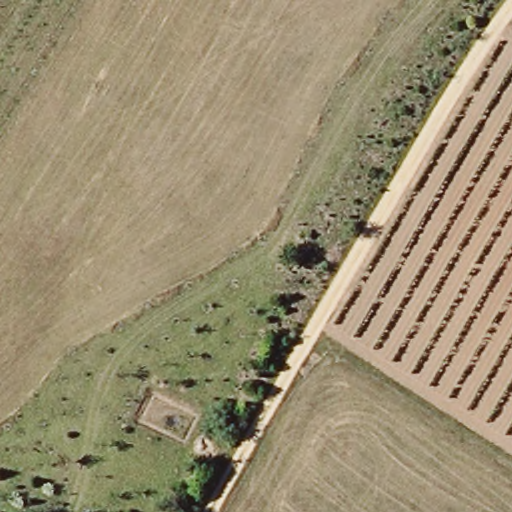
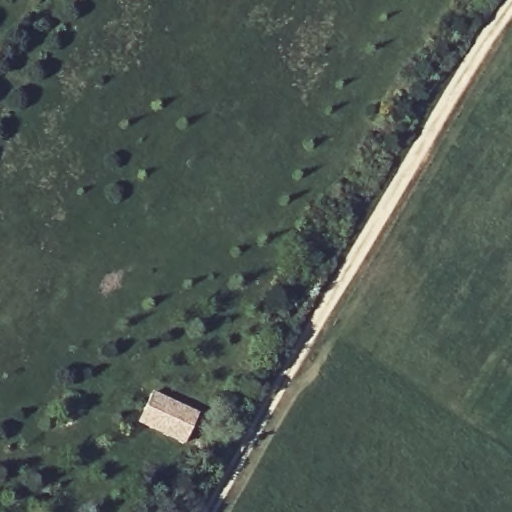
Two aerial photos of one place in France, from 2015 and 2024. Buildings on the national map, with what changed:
new [(137,423),(153,390),(199,412),(183,445),(137,423)]

